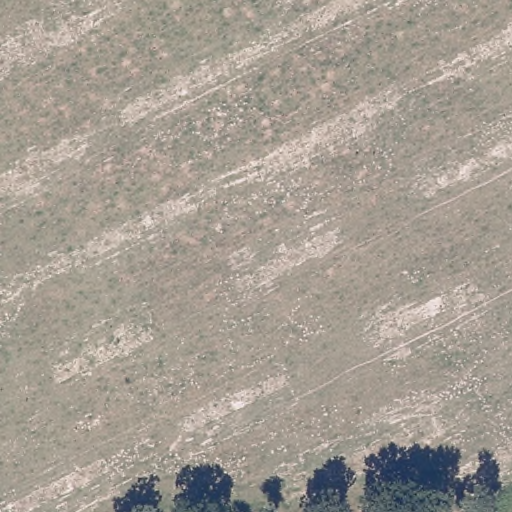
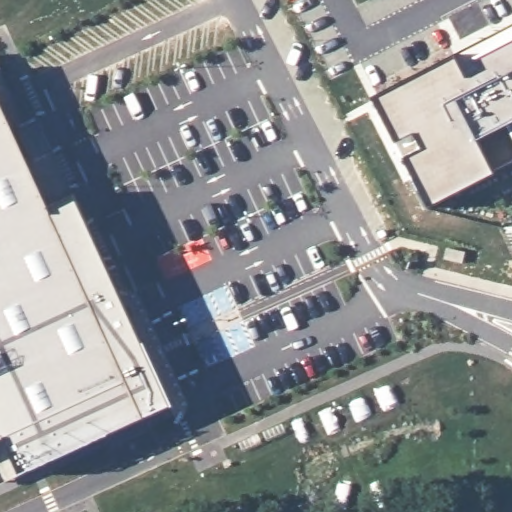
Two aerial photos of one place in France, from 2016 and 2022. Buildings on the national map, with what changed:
new [(461,79),(477,70),(470,56),(512,36),(512,162),(490,173),(428,207),(372,98),(449,56),(461,79)]
new [(23,118),(7,125),(24,164),(52,151),(75,194),(169,408),(18,477),(1,438),(0,438),(0,64),(23,118)]
new [(281,424),(286,434),(267,442),(263,432),(281,424)]
new [(257,435),(261,445),(243,453),(239,442),(257,435)]
new [(1,440),(18,476),(0,484),(0,440),(1,440)]

